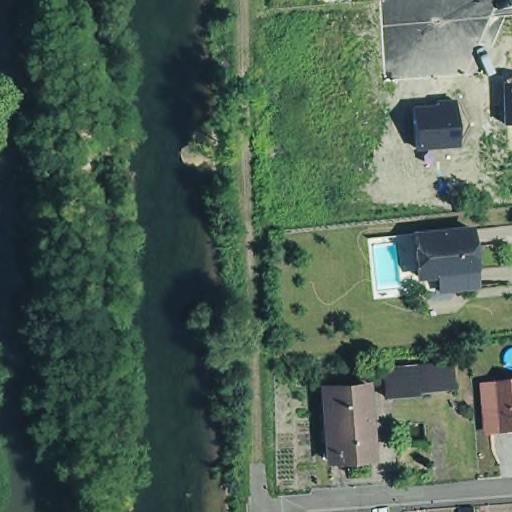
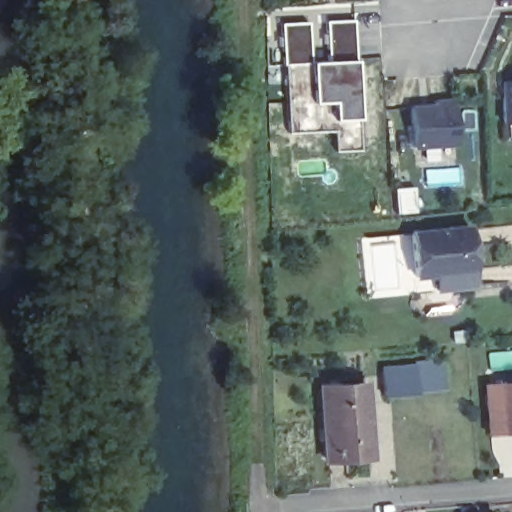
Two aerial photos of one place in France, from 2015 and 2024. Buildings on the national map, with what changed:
new [(359,148),(334,149),(333,129),(287,131),(284,62),(282,62),(280,22),(307,20),(309,60),(326,59),(324,19),(352,18),(354,59),(357,116),(359,148)]
unchanged [(503,82),(512,82),(512,124),(502,124),(503,82)]
unchanged [(437,103),(436,99),(454,98),(458,146),(414,148),(412,106),(437,103)]
unchanged [(437,283),(436,267),(416,269),(412,227),(469,221),(473,263),(474,280),(437,283)]
unchanged [(449,360),(451,388),(430,390),(428,361),(449,360)]
unchanged [(419,363),(422,392),(389,393),(387,366),(419,363)]
unchanged [(366,377),(368,412),(366,413),(369,450),(325,452),(321,380),(366,377)]
unchanged [(510,425),(499,426),(495,379),(506,378),(512,377),(512,425),(510,425)]

